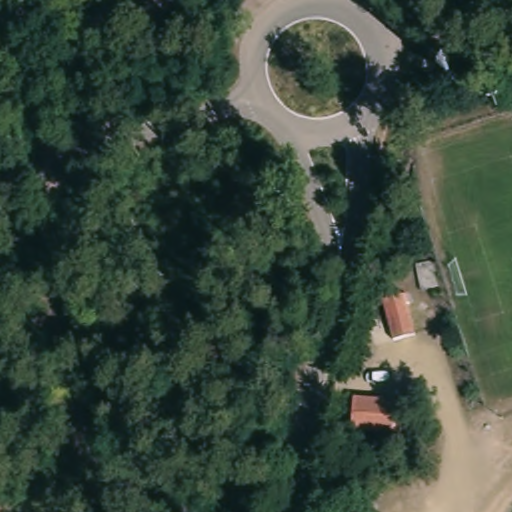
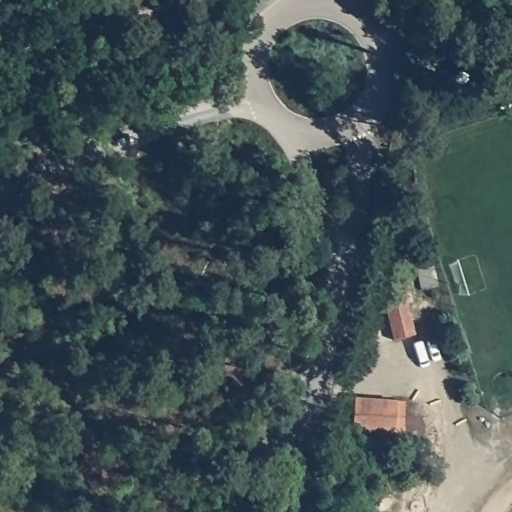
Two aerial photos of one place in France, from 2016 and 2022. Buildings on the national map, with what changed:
unchanged [(416,333),(394,340),(382,301),(404,295),(416,333)]
unchanged [(403,440),(395,439),(352,435),(355,403),(397,406),(405,407),(403,440)]

